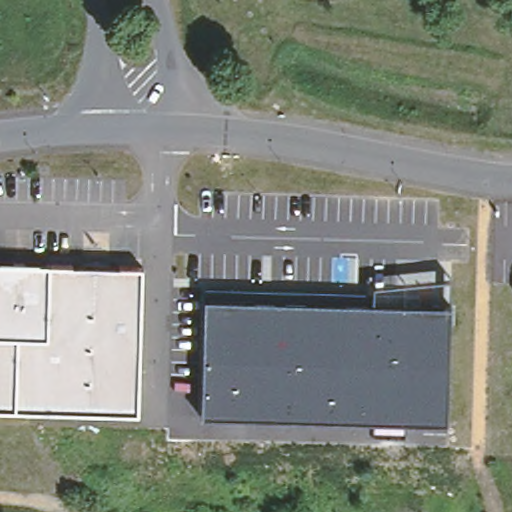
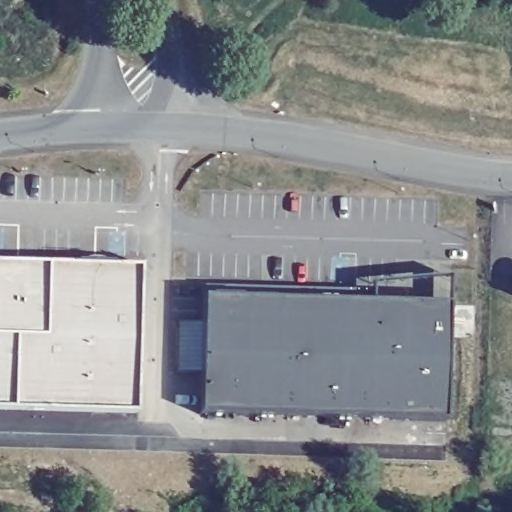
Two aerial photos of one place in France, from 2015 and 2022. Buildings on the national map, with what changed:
unchanged [(134,411),(0,408),(0,260),(138,263),(134,411)]
unchanged [(511,292),(511,291),(512,292),(512,293),(511,292)]
unchanged [(202,295),(448,305),(444,422),(197,416),(202,295)]

